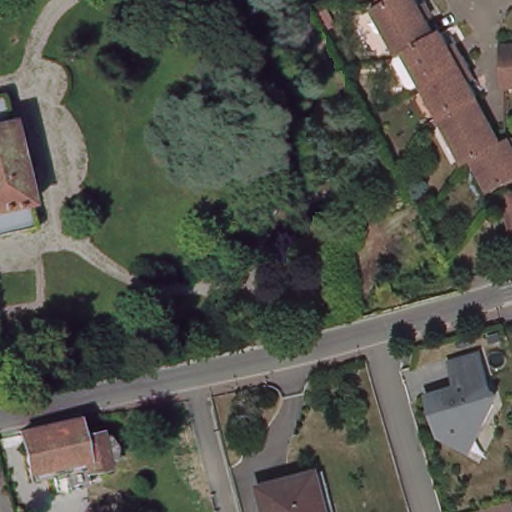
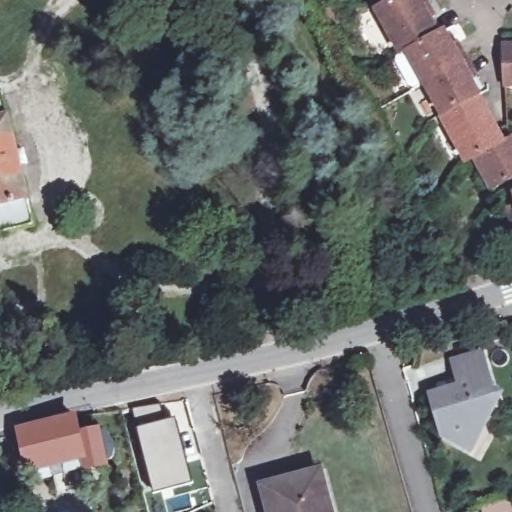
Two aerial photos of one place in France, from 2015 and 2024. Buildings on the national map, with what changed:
unchanged [(491,187),(475,157),(466,162),(441,116),(443,115),(408,50),(401,54),(377,8),(391,0),(418,0),(418,2),(420,4),(427,1),(434,15),(428,18),(437,34),(442,31),(448,27),(452,35),(446,37),(447,39),(448,42),(450,45),(457,41),(475,75),(468,78),(470,81),(472,86),(474,88),(480,85),(485,92),(478,96),(476,97),(501,142),(510,137),(512,137),(512,176),(491,187)]
unchanged [(505,82),(504,44),(512,44),(512,83),(505,82)]
unchanged [(34,225),(0,232),(0,92),(2,92),(34,225)]
unchanged [(465,447),(453,438),(447,412),(442,413),(436,393),(465,386),(459,360),(488,352),(501,403),(487,431),(475,452),(465,447)]
unchanged [(26,475),(15,426),(15,423),(69,412),(73,429),(87,426),(98,430),(107,438),(107,451),(95,459),(60,467),(49,470),(26,475)]
new [(175,417),(192,483),(153,493),(137,426),(175,417)]
unchanged [(330,512),(274,512),(267,485),(319,472),(330,512)]
unchanged [(480,510),(510,500),(512,504),(512,512),(481,512),(480,510)]

